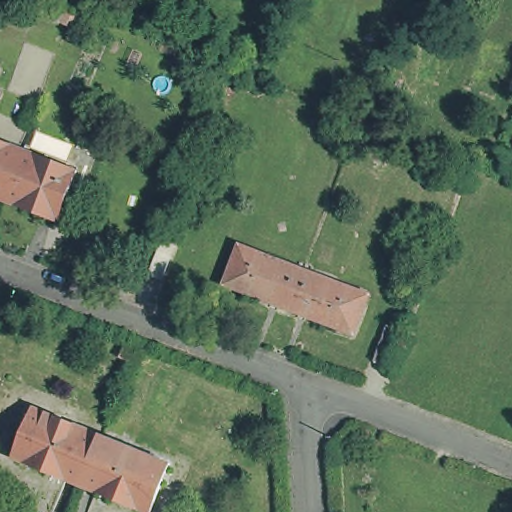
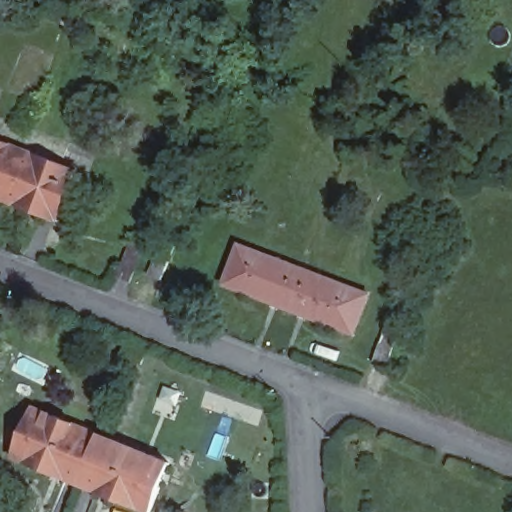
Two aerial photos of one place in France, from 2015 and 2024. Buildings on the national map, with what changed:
unchanged [(0,205),(0,149),(18,157),(0,206),(0,205)]
unchanged [(72,177),(54,226),(0,206),(18,157),(72,177)]
unchanged [(173,247),(159,282),(148,278),(161,242),(173,247)]
unchanged [(227,282),(242,242),(306,267),(291,307),(227,282)]
unchanged [(143,250),(131,286),(116,281),(129,245),(143,250)]
unchanged [(371,292),(355,331),(291,307),(306,267),(371,292)]
unchanged [(394,333),(382,367),(369,362),(383,328),(394,333)]
unchanged [(103,430),(83,478),(17,450),(36,402),(103,430)]
unchanged [(171,458),(151,506),(83,478),(103,430),(171,458)]

